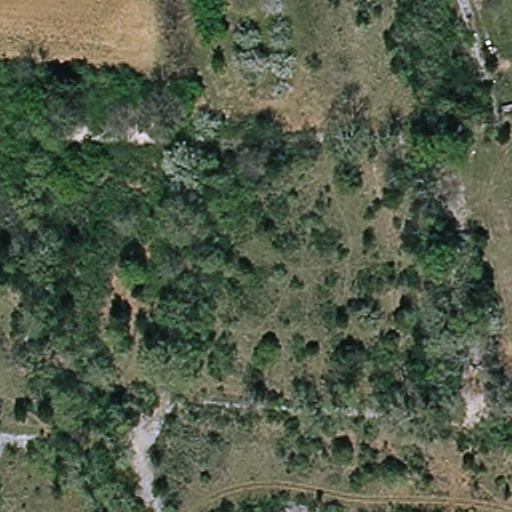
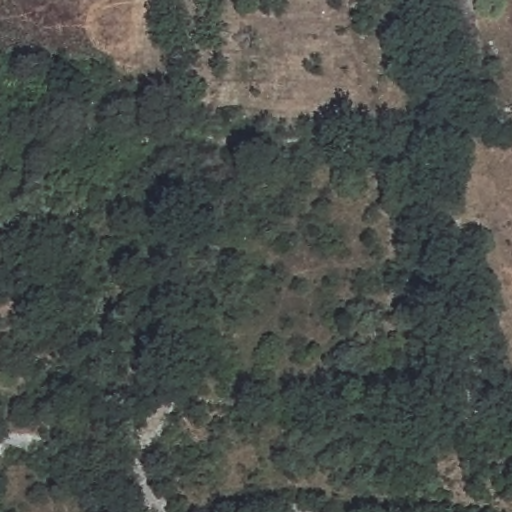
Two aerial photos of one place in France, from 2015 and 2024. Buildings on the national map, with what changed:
[]

